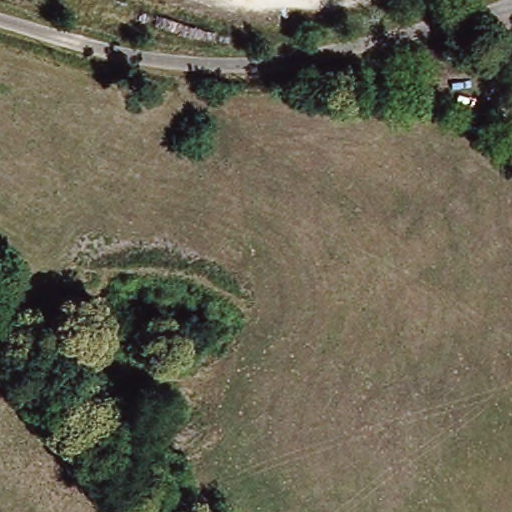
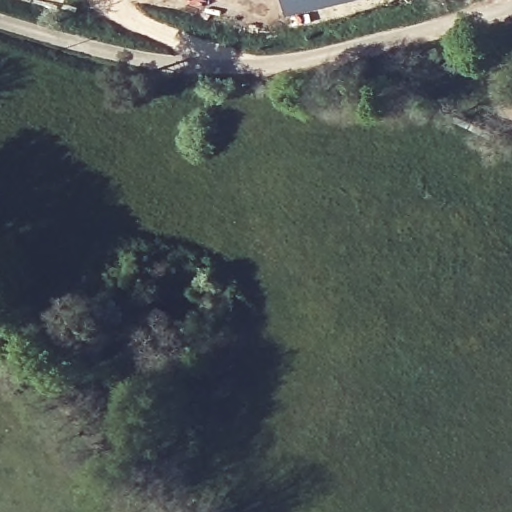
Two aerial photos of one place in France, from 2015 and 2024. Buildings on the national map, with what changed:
new [(285,0),(357,0),(290,15),(285,0)]

